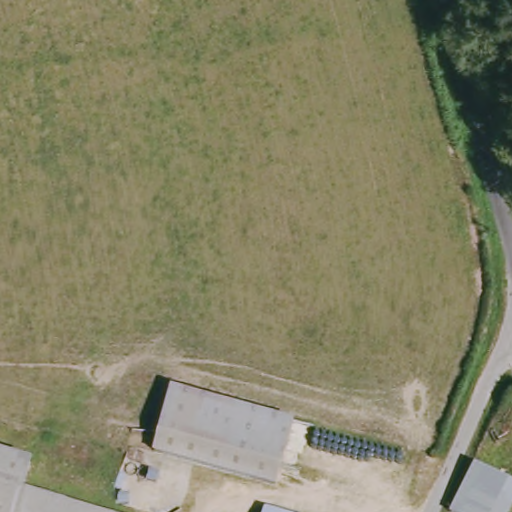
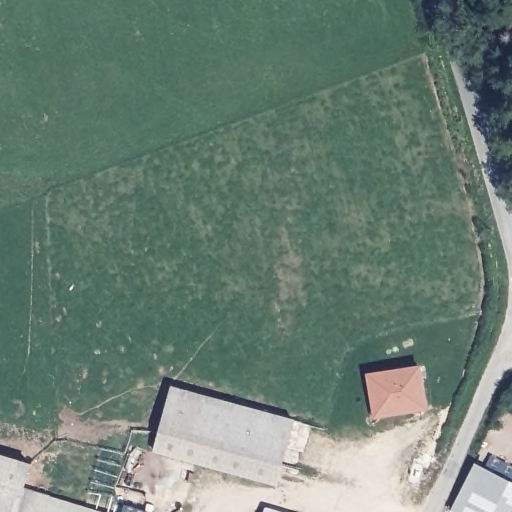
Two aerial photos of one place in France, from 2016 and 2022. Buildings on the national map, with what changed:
new [(375,418),(367,375),(421,364),(430,411),(375,418)]
unchanged [(166,431),(181,389),(279,419),(300,426),(285,468),(275,465),(166,431)]
unchanged [(275,465),(285,468),(278,489),(273,487),(160,452),(166,431),(275,465)]
unchanged [(35,474),(31,484),(30,489),(24,512),(0,512),(0,450),(41,463),(39,469),(35,474)]
unchanged [(512,512),(458,512),(464,497),(474,467),(512,479),(512,512)]
unchanged [(105,512),(24,512),(30,489),(105,512)]
unchanged [(270,506),(290,512),(268,512),(270,506)]

